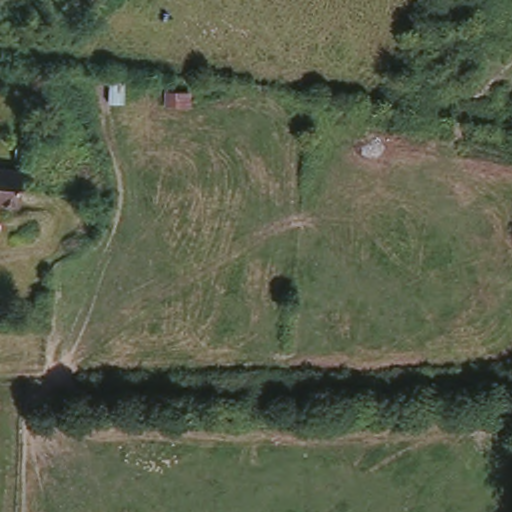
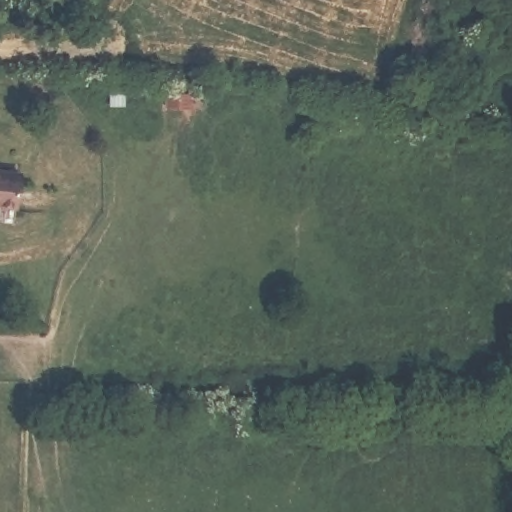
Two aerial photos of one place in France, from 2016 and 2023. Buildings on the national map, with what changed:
unchanged [(21,166),(18,200),(0,198),(0,164),(21,166)]

